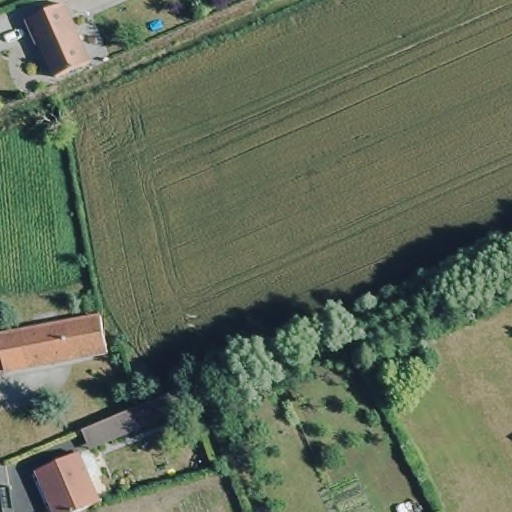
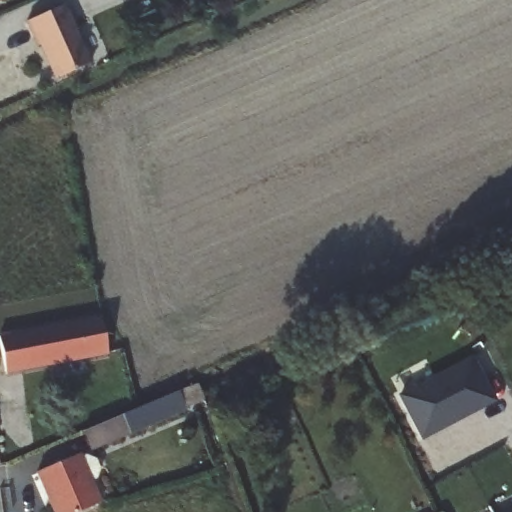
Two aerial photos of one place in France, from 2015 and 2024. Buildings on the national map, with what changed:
unchanged [(90,63),(55,79),(35,36),(33,36),(26,21),(64,5),(90,63)]
unchanged [(106,314),(113,353),(0,370),(0,331),(106,314)]
new [(400,396),(472,359),(494,401),(478,409),(477,406),(421,436),(400,396)]
unchanged [(112,381),(108,382),(106,371),(116,370),(126,368),(132,401),(134,412),(137,411),(180,394),(187,412),(133,433),(91,450),(84,432),(120,418),(112,381)]
unchanged [(91,508),(79,512),(46,512),(32,475),(72,458),(90,502),(91,508)]

